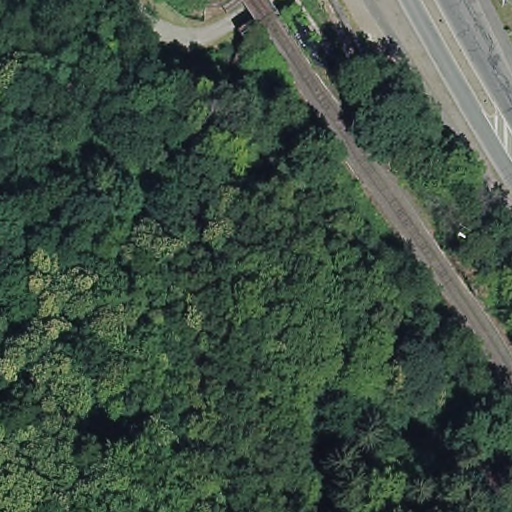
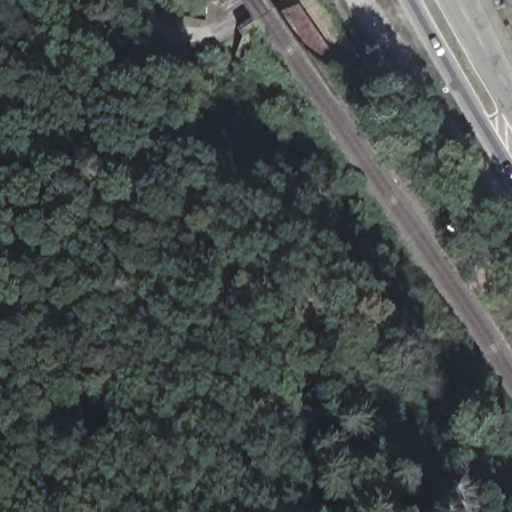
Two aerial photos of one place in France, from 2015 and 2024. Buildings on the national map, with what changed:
unchanged [(452,230),(462,218),(474,230),(465,241),(452,230)]

